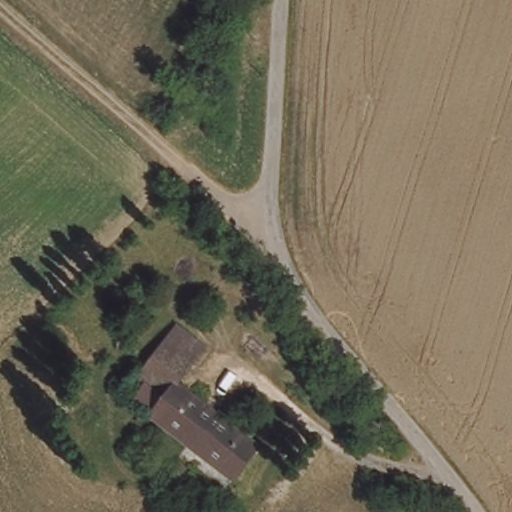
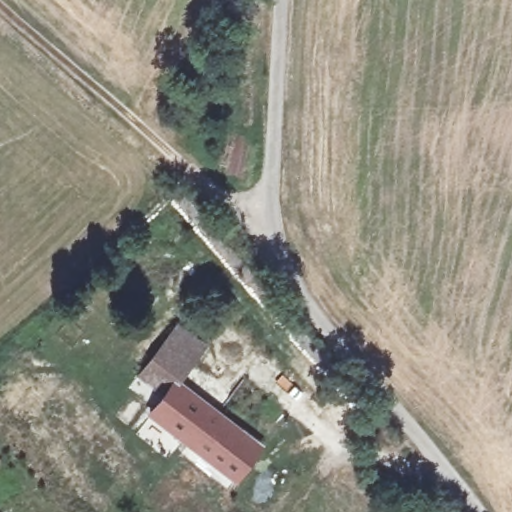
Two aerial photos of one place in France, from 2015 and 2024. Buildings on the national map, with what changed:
unchanged [(265,450),(240,482),(155,415),(170,395),(164,390),(145,375),(183,326),(197,338),(210,348),(197,363),(181,383),(265,450)]

